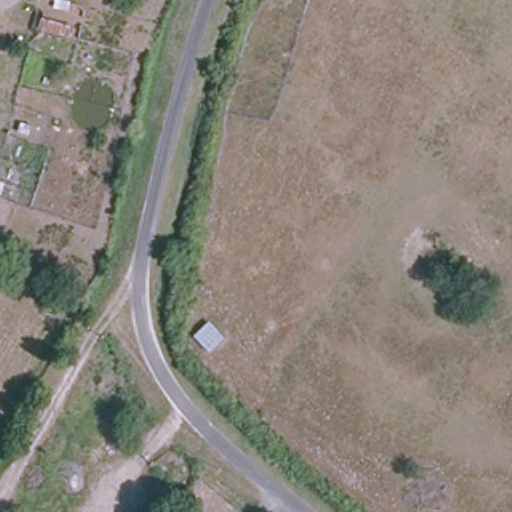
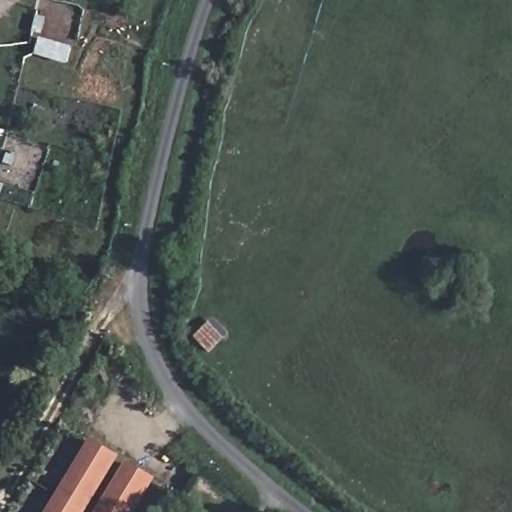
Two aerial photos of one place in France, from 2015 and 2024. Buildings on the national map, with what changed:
unchanged [(209,355),(192,337),(211,321),(225,339),(209,355)]
new [(85,512),(45,512),(90,436),(120,454),(85,512)]
new [(135,512),(95,512),(126,458),(156,476),(135,512)]

